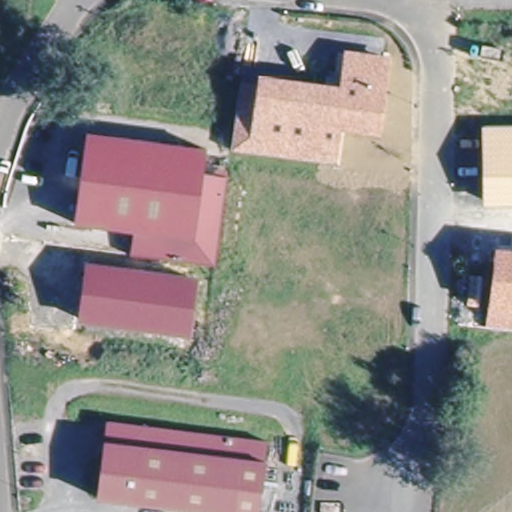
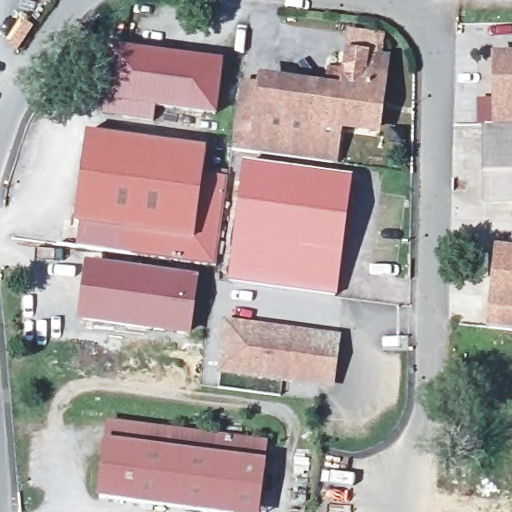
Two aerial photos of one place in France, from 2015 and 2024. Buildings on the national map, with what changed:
new [(223,63),(217,116),(155,109),(152,124),(102,116),(112,47),(223,63)]
unchanged [(388,56),(379,133),(342,130),(338,164),(232,150),(240,74),(339,86),(344,50),(388,56)]
new [(512,125),(491,125),(489,52),(512,52),(512,125)]
unchanged [(491,125),(512,125),(512,206),(483,206),(483,125),(491,125)]
unchanged [(205,147),(202,174),(227,177),(217,266),(130,255),(134,231),(76,224),(87,131),(205,147)]
new [(227,280),(242,162),(351,177),(336,295),(227,280)]
new [(73,245),(76,224),(134,231),(130,255),(73,245)]
unchanged [(512,327),(487,323),(496,246),(512,248),(512,327)]
unchanged [(199,277),(192,338),(78,323),(86,260),(199,277)]
new [(223,320),(340,335),(334,389),(216,373),(223,320)]
unchanged [(235,512),(200,512),(100,499),(108,442),(110,423),(110,422),(125,424),(217,436),(214,456),(242,460),(235,512)]
unchanged [(235,512),(242,460),(214,456),(217,436),(269,442),(260,512),(235,512)]

